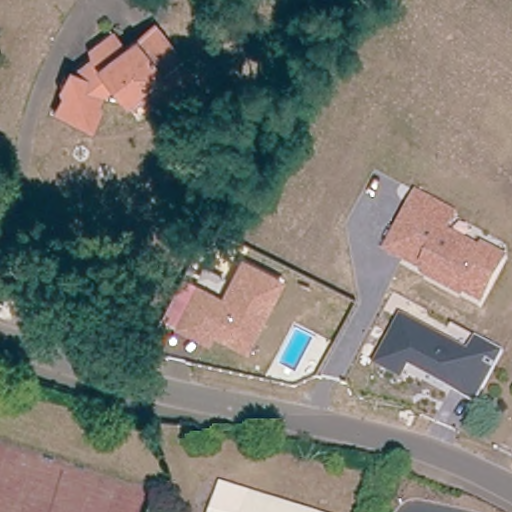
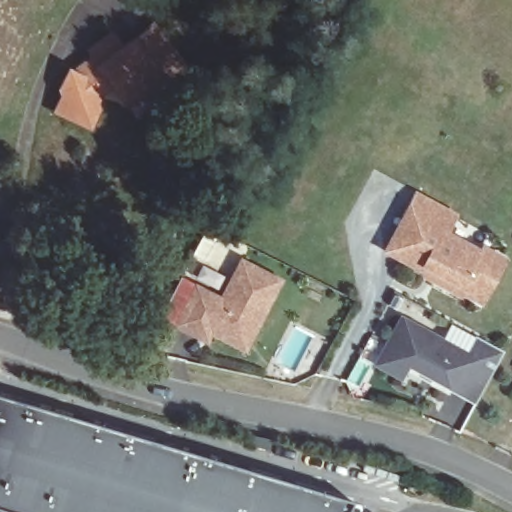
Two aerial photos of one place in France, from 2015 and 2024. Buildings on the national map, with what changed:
unchanged [(146,89),(129,101),(123,94),(110,93),(105,97),(94,128),(62,116),(68,100),(67,96),(67,91),(74,77),(95,66),(98,52),(117,38),(126,50),(156,29),(179,59),(176,62),(190,81),(157,105),(146,89)]
unchanged [(408,202),(415,190),(458,214),(449,232),(478,247),(481,243),(508,257),(488,295),(481,308),(382,251),(408,202)]
unchanged [(226,341),(204,328),(199,337),(191,332),(160,315),(184,273),(213,290),(223,296),(242,262),(280,283),(252,332),(242,350),(226,341)]
unchanged [(400,315),(467,350),(475,337),(503,352),(475,403),(409,369),(401,381),(373,365),(400,315)]
new [(346,512),(10,512),(0,509),(0,399),(351,503),(346,512)]
demolished [(300,512),(239,512),(245,496),(300,512)]

